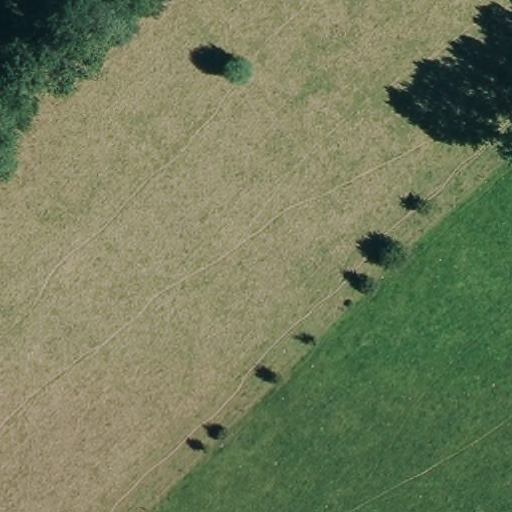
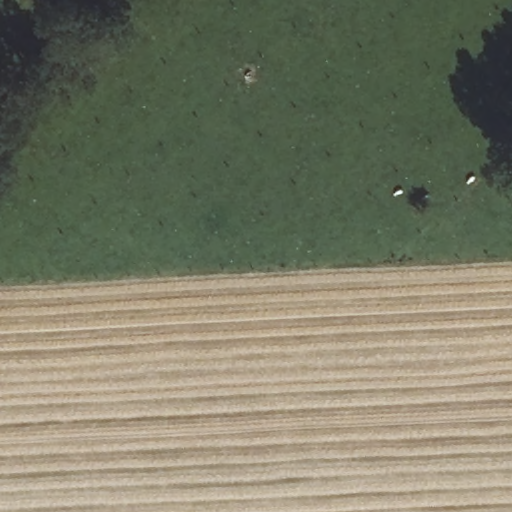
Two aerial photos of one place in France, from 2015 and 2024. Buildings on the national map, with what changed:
[]

